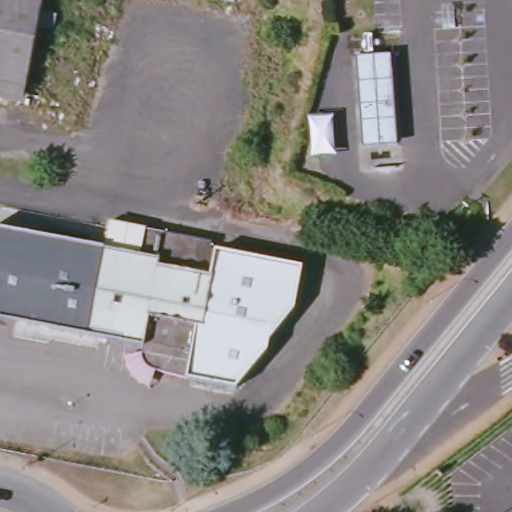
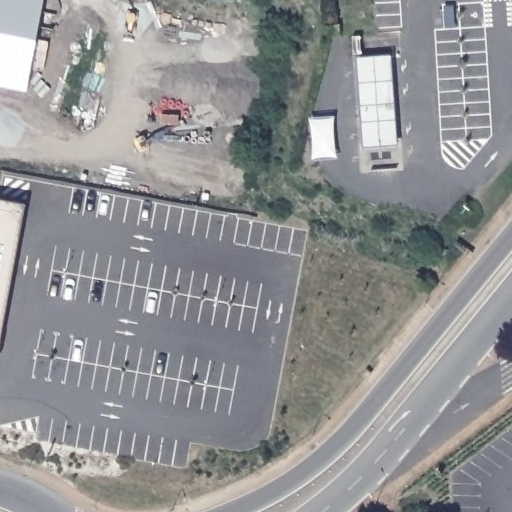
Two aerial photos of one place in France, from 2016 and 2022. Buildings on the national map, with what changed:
unchanged [(28,89),(0,84),(0,0),(44,0),(28,89)]
unchanged [(231,3),(218,0),(232,0),(231,3)]
unchanged [(453,8),(455,28),(443,29),(442,9),(453,8)]
unchanged [(388,57),(392,143),(362,144),(358,59),(388,57)]
new [(7,246),(0,244),(0,210),(13,213),(7,246)]
demolished [(112,224),(165,235),(165,238),(160,261),(104,252),(112,224)]
demolished [(0,324),(0,231),(104,252),(88,340),(0,324)]
demolished [(160,261),(165,238),(206,245),(205,254),(299,272),(295,311),(271,337),(268,355),(237,391),(156,377),(148,373),(142,366),(140,358),(141,350),(88,340),(104,252),(160,261)]
new [(0,282),(0,244),(7,246),(0,282)]

